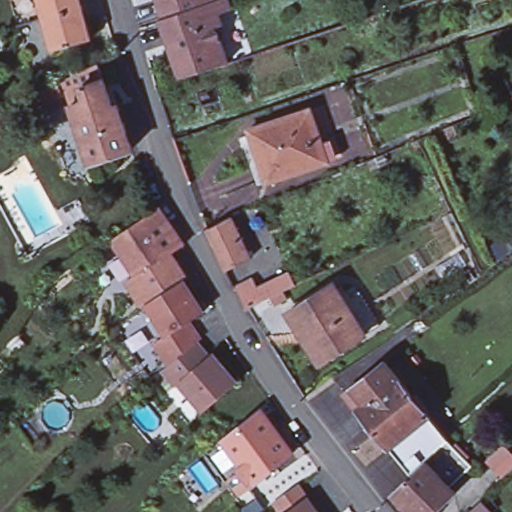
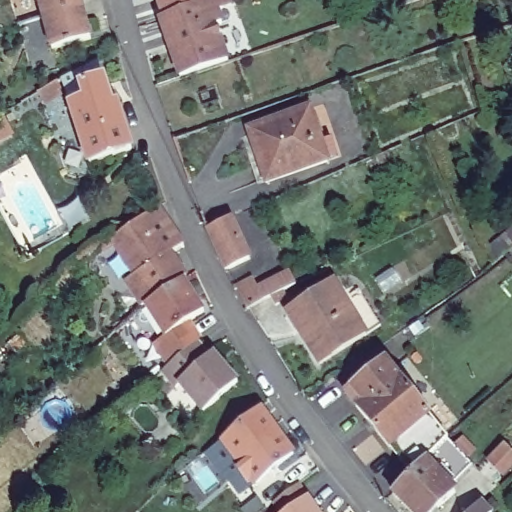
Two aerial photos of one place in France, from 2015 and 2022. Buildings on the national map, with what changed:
unchanged [(45,16),(41,0),(81,0),(82,7),(45,16)]
unchanged [(166,15),(162,0),(210,0),(166,15)]
unchanged [(181,73),(163,16),(166,15),(210,0),(227,0),(227,1),(217,5),(221,19),(217,20),(229,58),(181,73)]
unchanged [(91,39),(53,48),(45,16),(82,7),(91,39)]
unchanged [(67,108),(65,100),(80,94),(77,87),(73,73),(93,63),(99,80),(108,106),(113,105),(121,129),(78,143),(67,108)]
unchanged [(261,178),(243,126),(306,106),(317,138),(327,135),(333,153),(261,178)]
unchanged [(9,134),(0,138),(0,121),(2,121),(9,134)]
unchanged [(128,150),(85,164),(78,143),(121,129),(128,150)]
unchanged [(184,239),(142,268),(140,265),(135,269),(112,236),(161,203),(184,239)]
unchanged [(207,231),(208,230),(230,218),(249,258),(227,272),(207,231)]
unchanged [(184,239),(195,262),(155,288),(142,268),(184,239)]
unchanged [(170,285),(185,276),(205,308),(190,318),(201,335),(196,339),(170,361),(155,339),(166,332),(147,301),(170,285)]
unchanged [(235,289),(254,278),(265,299),(245,311),(235,289)]
unchanged [(326,359),(316,365),(286,314),(332,285),(363,337),(326,359)]
unchanged [(273,306),(269,297),(280,292),(283,300),(273,306)]
unchanged [(117,320),(121,316),(125,321),(121,324),(117,320)]
unchanged [(207,353),(211,351),(232,383),(199,411),(187,393),(182,396),(162,366),(170,361),(196,339),(207,353)]
unchanged [(393,438),(391,440),(347,385),(386,352),(430,408),(393,438)]
unchanged [(235,475),(249,464),(230,437),(268,407),(300,449),(260,478),(245,489),(235,475)]
unchanged [(393,438),(430,408),(450,432),(427,453),(415,465),(393,438)]
unchanged [(450,432),(473,457),(452,479),(427,453),(450,432)]
unchanged [(427,453),(452,479),(457,484),(429,512),(422,512),(395,484),(415,465),(427,453)]
unchanged [(272,512),(294,496),(305,489),(321,512),(272,512)]
unchanged [(493,512),(467,512),(482,498),(493,512)]

